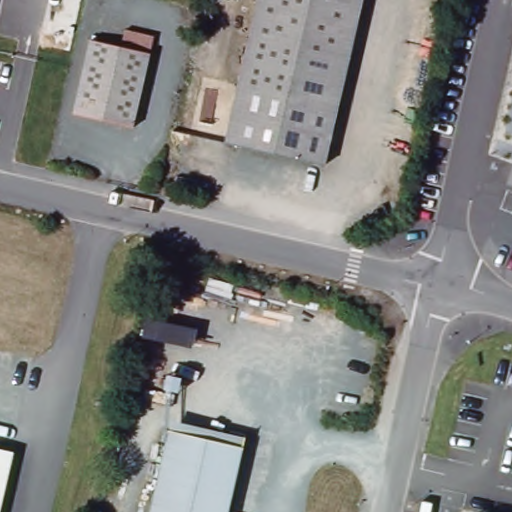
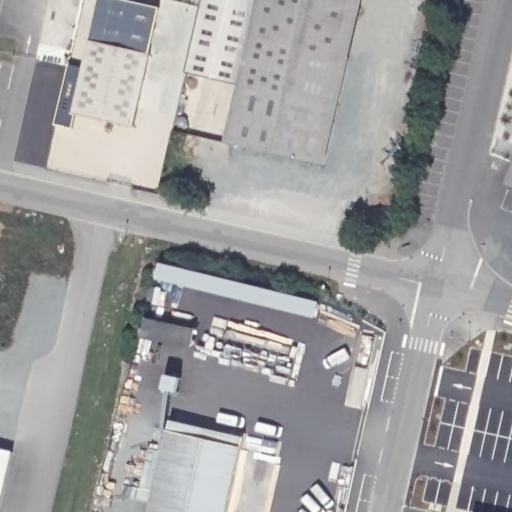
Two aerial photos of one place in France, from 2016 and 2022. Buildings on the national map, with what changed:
new [(205,0),(264,0),(245,84),(239,83),(189,73),(205,0)]
unchanged [(367,0),(342,107),(245,84),(264,0),(367,0)]
unchanged [(91,41),(151,54),(134,128),(74,114),(91,41)]
unchanged [(245,84),(342,107),(328,166),(231,143),(245,84)]
unchanged [(507,185),(512,170),(512,187),(507,185)]
unchanged [(166,375),(181,378),(177,393),(163,390),(166,375)]
unchanged [(173,431),(247,448),(233,512),(155,512),(173,431)]
unchanged [(3,512),(0,512),(0,446),(16,450),(3,512)]

